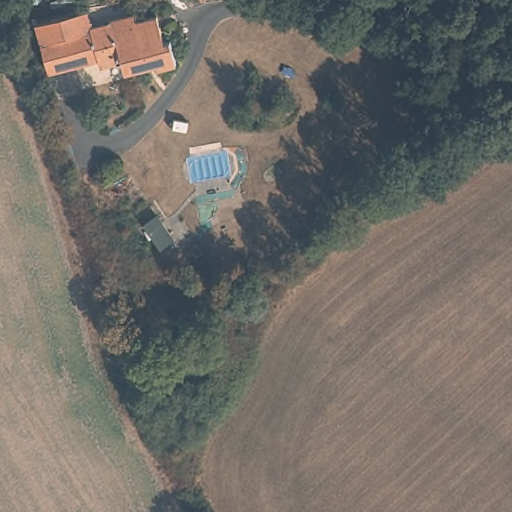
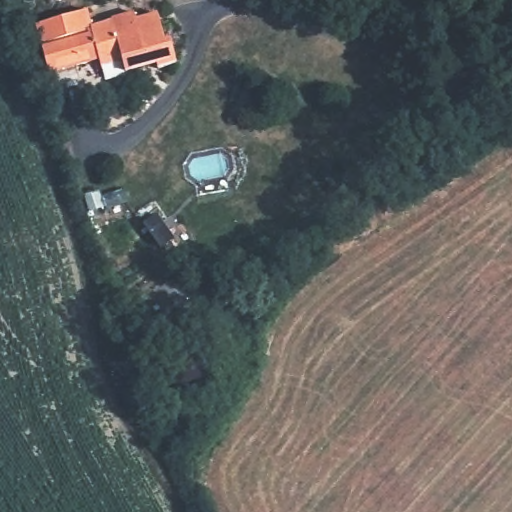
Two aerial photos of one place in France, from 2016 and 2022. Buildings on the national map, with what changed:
unchanged [(31,16),(51,12),(52,15),(79,10),(82,25),(104,20),(105,29),(155,21),(163,70),(114,79),(110,61),(89,65),(90,71),(69,75),(67,71),(45,74),(42,45),(34,47),(31,16)]

